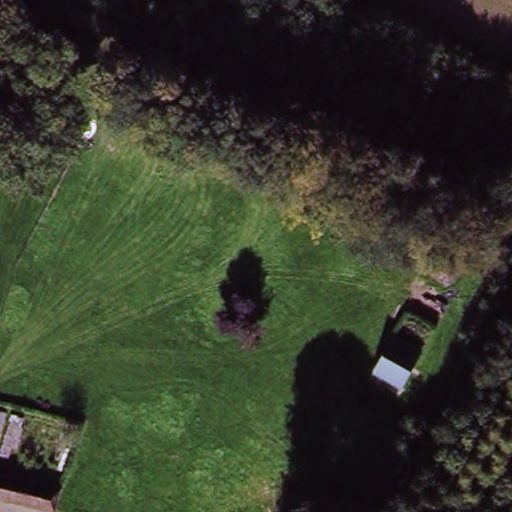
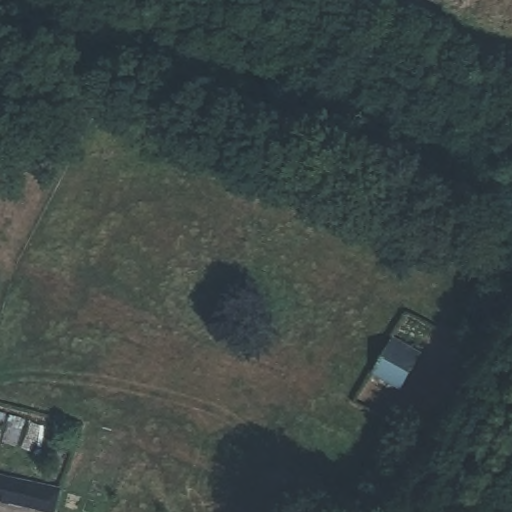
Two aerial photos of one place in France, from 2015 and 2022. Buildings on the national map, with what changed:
unchanged [(395,390),(372,376),(392,342),(415,357),(395,390)]
unchanged [(41,512),(0,503),(0,479),(57,491),(52,512),(41,512)]

